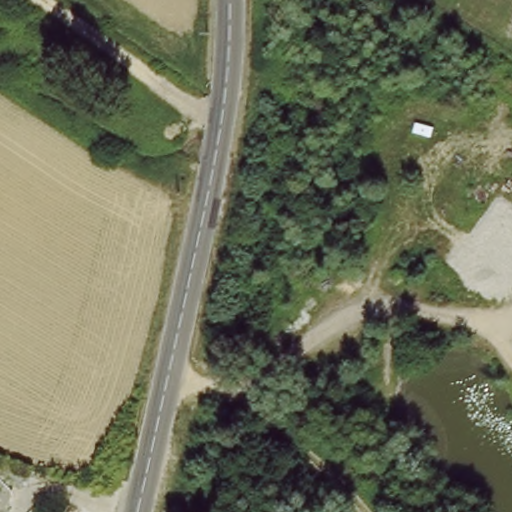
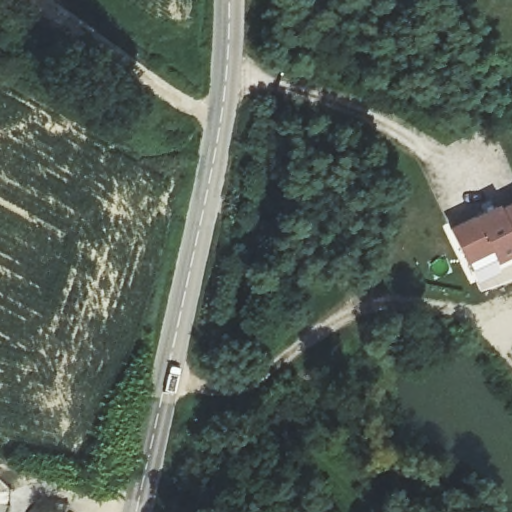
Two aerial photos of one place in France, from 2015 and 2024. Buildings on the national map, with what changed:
new [(469,268),(461,262),(446,227),(470,216),(494,204),(496,209),(512,201),(512,247),(512,253),(490,260),(469,268)]

